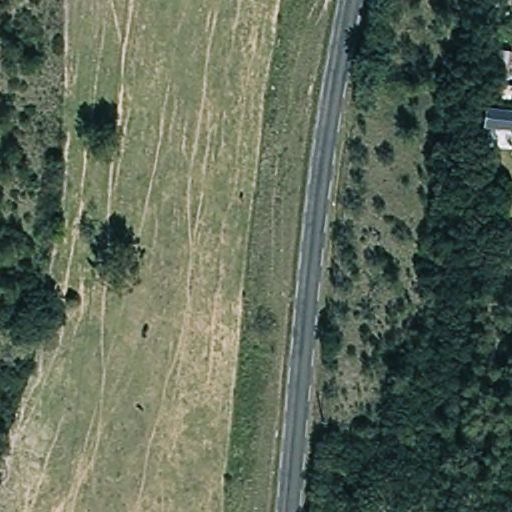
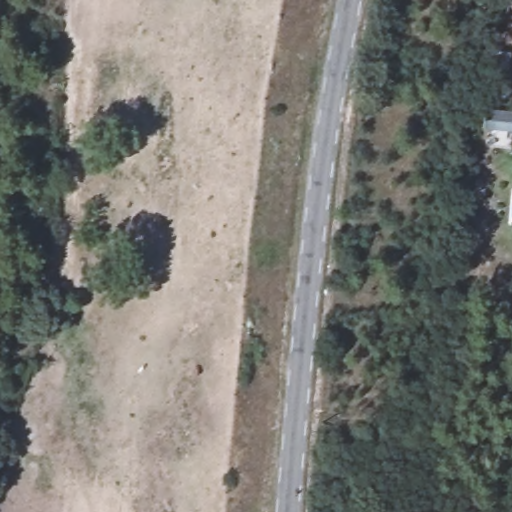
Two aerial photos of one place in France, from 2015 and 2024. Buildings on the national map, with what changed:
unchanged [(512,52),(512,56),(505,84),(512,85),(512,105),(490,101),(495,52),(512,52)]
unchanged [(419,433),(417,450),(406,447),(409,432),(419,433)]

